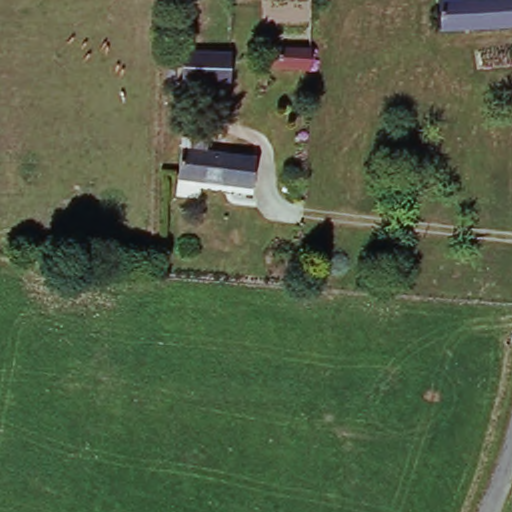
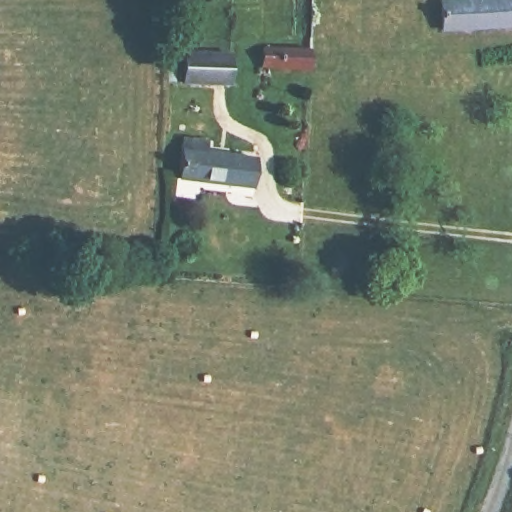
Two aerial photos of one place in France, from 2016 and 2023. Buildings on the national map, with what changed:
unchanged [(444,25),(444,0),(512,0),(512,25),(444,25)]
unchanged [(310,47),(310,69),(263,69),(263,49),(310,47)]
unchanged [(222,51),(222,81),(179,80),(182,52),(222,51)]
unchanged [(199,140),(199,155),(252,156),(252,181),(248,183),(183,181),(179,179),(179,140),(199,140)]

